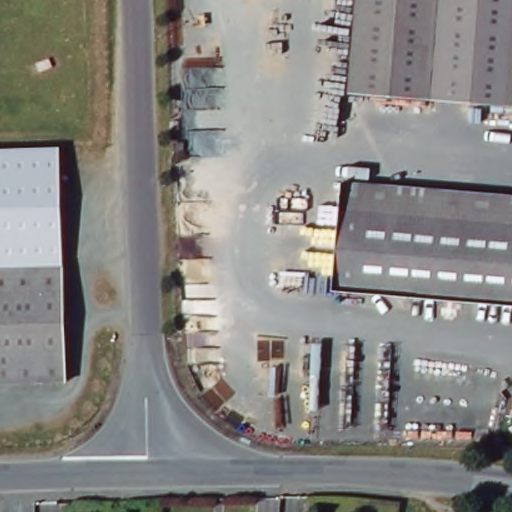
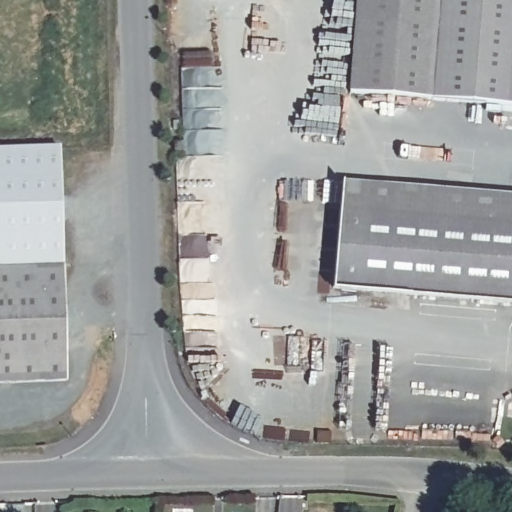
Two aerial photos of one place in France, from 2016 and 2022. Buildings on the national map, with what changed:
unchanged [(512,105),(359,98),(365,0),(512,0),(512,105)]
unchanged [(64,146),(68,381),(0,381),(0,149),(64,146)]
unchanged [(197,150),(197,161),(185,161),(185,149),(197,150)]
unchanged [(512,302),(341,289),(350,178),(512,193),(512,302)]

